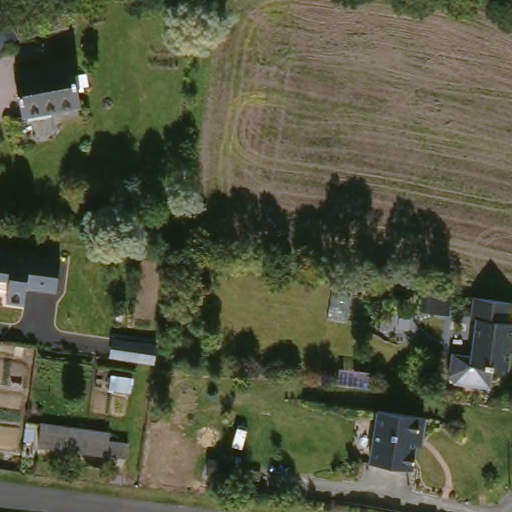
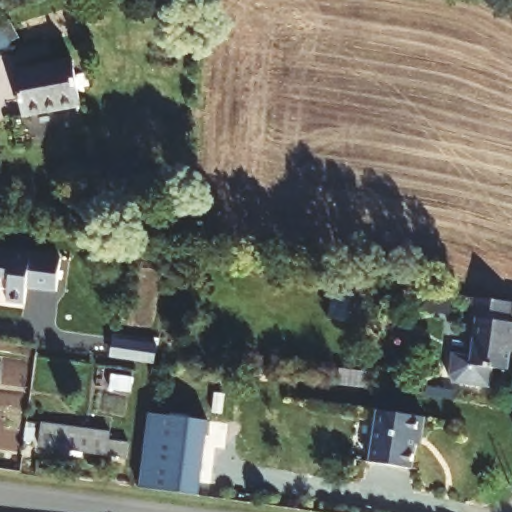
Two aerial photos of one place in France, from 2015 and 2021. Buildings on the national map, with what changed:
unchanged [(16,42),(0,52),(0,17),(2,15),(16,42)]
unchanged [(27,58),(87,67),(85,78),(97,80),(94,96),(83,94),(78,112),(20,104),(27,58)]
unchanged [(59,286),(30,283),(29,297),(12,296),(12,282),(0,280),(0,241),(64,249),(59,286)]
unchanged [(418,291),(443,295),(441,314),(416,310),(418,291)]
unchanged [(471,316),(472,293),(512,299),(512,313),(511,321),(512,321),(512,348),(508,348),(506,366),(492,364),(490,385),(452,380),(447,373),(450,350),(471,352),(475,317),(471,316)]
unchanged [(151,363),(135,361),(109,358),(111,339),(138,343),(153,345),(151,363)]
unchanged [(431,410),(428,425),(424,425),(419,460),(377,453),(384,402),(431,410)]
new [(149,412),(207,419),(198,493),(140,485),(149,412)]
unchanged [(112,426),(111,451),(45,443),(49,418),(112,426)]

